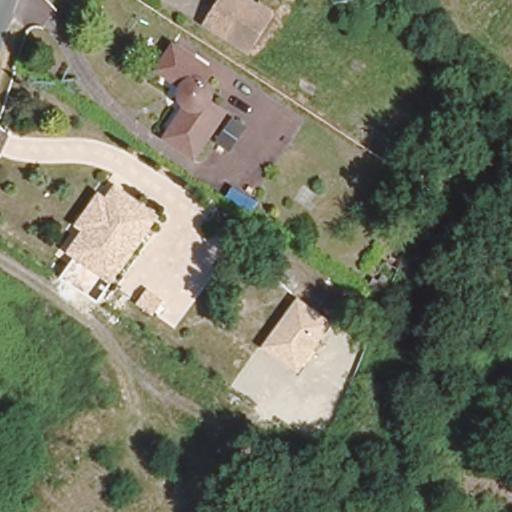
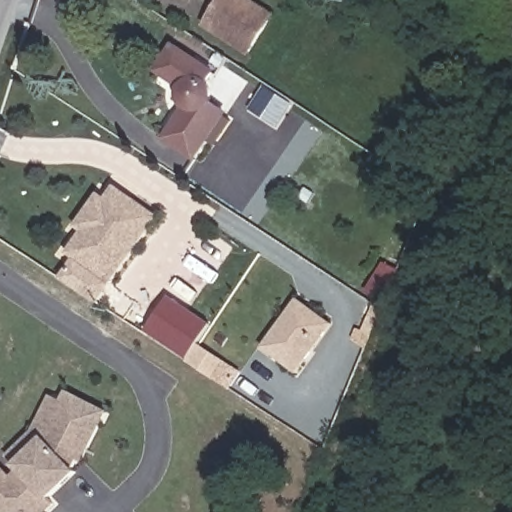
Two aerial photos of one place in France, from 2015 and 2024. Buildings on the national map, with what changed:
unchanged [(248,54),(206,27),(224,0),(242,0),(271,19),(248,54)]
unchanged [(212,85),(209,90),(210,91),(211,92),(212,93),(214,95),(216,100),(217,104),(218,110),(217,114),(216,116),(215,119),(225,126),(194,170),(166,151),(184,124),(182,122),(180,120),(178,117),(177,115),(177,111),(176,109),(176,106),(176,103),(177,100),(157,86),(175,60),(212,85)]
unchanged [(61,263),(76,240),(69,235),(93,201),(100,205),(109,192),(133,209),(112,205),(106,215),(93,215),(83,230),(88,242),(70,268),(61,263)]
unchanged [(106,215),(112,205),(133,209),(161,227),(114,298),(70,268),(88,242),(83,230),(93,215),(106,215)]
demolished [(176,304),(167,317),(151,306),(160,293),(176,304)]
new [(242,372),(230,389),(145,332),(169,296),(212,324),(199,343),(242,372)]
unchanged [(297,297),(333,322),(297,372),(262,347),(297,297)]
new [(51,499),(55,504),(47,512),(0,512),(0,464),(11,475),(17,470),(5,456),(31,430),(48,395),(60,400),(65,390),(108,411),(79,472),(51,499)]

